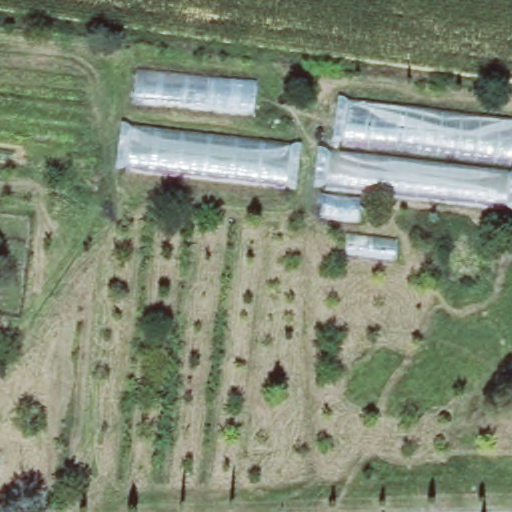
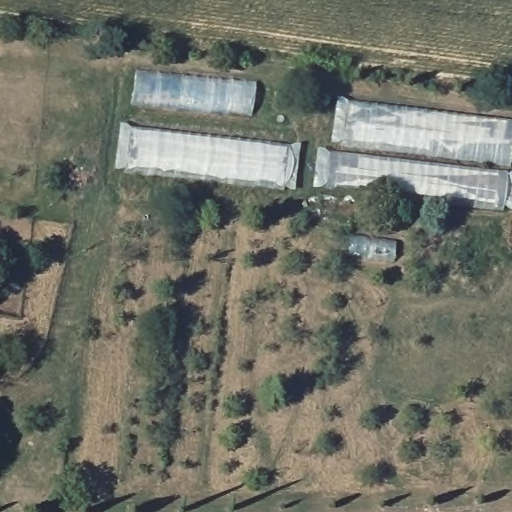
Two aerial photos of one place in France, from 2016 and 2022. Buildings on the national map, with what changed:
unchanged [(129,69),(257,79),(251,131),(298,136),(294,192),(119,175),(129,69)]
unchanged [(340,99),(512,120),(512,162),(334,142),(340,99)]

